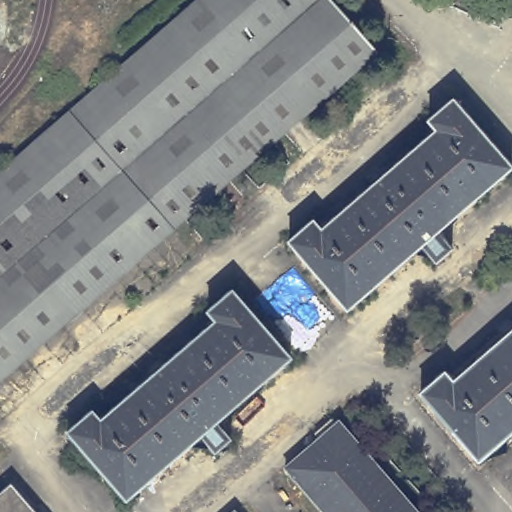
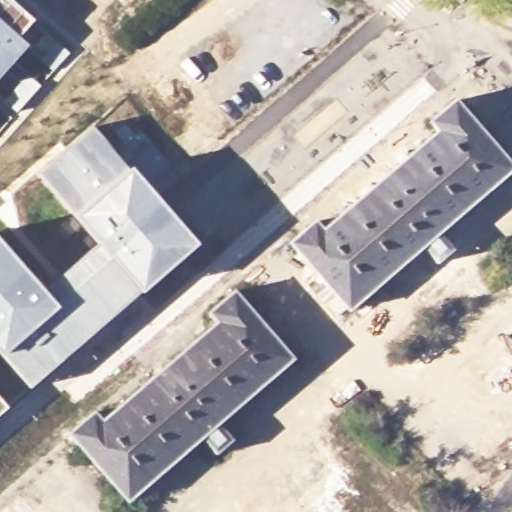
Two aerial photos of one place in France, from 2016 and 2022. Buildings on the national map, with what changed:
new [(6,0),(30,21),(16,36),(26,46),(0,76),(0,0),(6,0)]
demolished [(194,0),(333,0),(378,53),(0,378),(0,168),(194,0)]
unchanged [(317,223),(325,232),(439,131),(431,123),(456,101),(512,166),(512,171),(440,234),(455,251),(443,261),(428,244),(351,312),(293,245),(317,223)]
new [(138,295),(27,391),(0,359),(0,242),(40,287),(91,242),(70,218),(33,175),(90,127),(120,163),(147,146),(165,166),(138,180),(193,245),(138,295)]
unchanged [(73,437),(97,417),(106,426),(220,325),(211,316),(236,295),(294,361),(220,427),(234,443),(218,457),(204,441),(132,504),(73,437)]
demolished [(448,374),(456,383),(512,335),(512,438),(483,463),(424,395),(448,374)]
new [(6,408),(0,413),(0,401),(6,408)]
demolished [(289,471),(320,445),(320,444),(343,423),(419,512),(325,512),(289,471)]
demolished [(11,484),(36,512),(0,512),(0,494),(11,484)]

